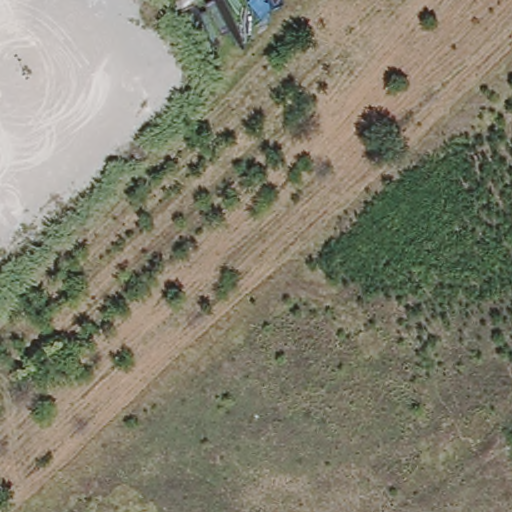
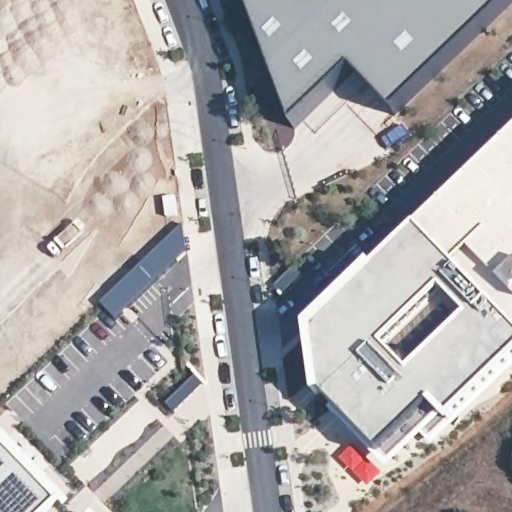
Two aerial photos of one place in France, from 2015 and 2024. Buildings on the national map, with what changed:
new [(395,111),(353,69),(295,125),(249,0),(511,0),(395,111)]
new [(435,443),(427,435),(395,468),(380,451),(325,394),(317,394),(309,328),(372,266),(376,270),(512,139),(512,368),(453,425),(435,443)]
new [(66,507),(71,512),(0,512),(0,446),(10,437),(71,502),(66,507)]

